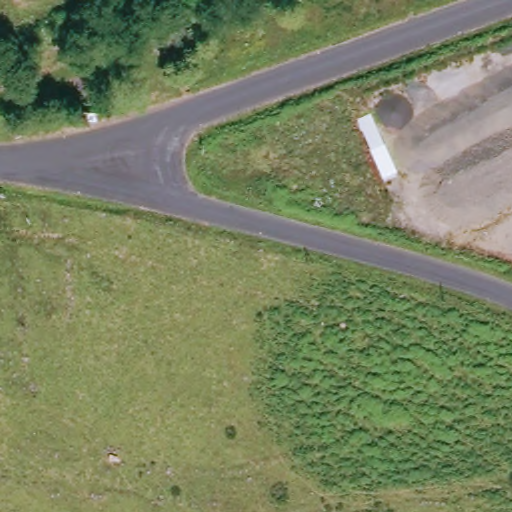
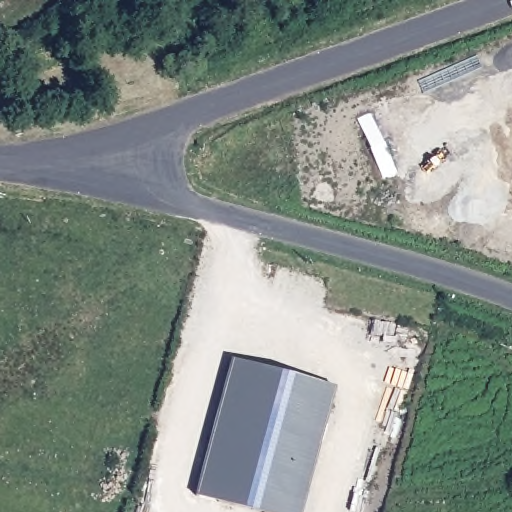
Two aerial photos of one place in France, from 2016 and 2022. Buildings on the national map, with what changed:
new [(194,496),(230,358),(335,386),(301,512),(253,512),(194,496)]

